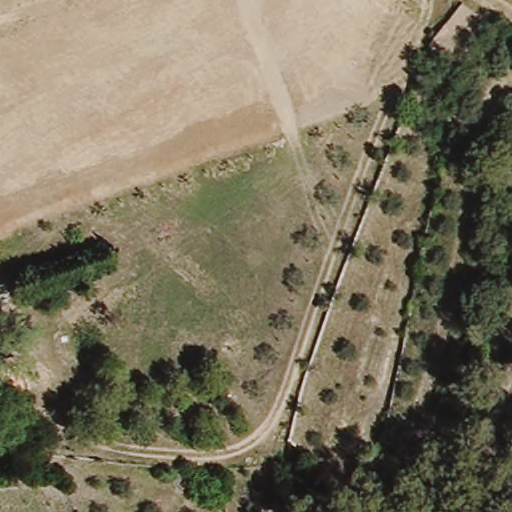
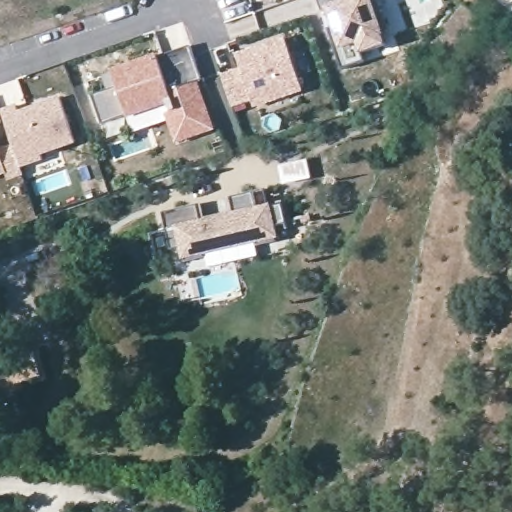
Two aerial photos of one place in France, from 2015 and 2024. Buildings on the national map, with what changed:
new [(382,32),(386,45),(363,53),(366,61),(343,70),(334,45),(341,43),(330,9),(323,11),(318,0),(379,0),(389,30),(382,32)]
unchanged [(491,20),(457,62),(430,41),(454,12),(463,0),(491,20)]
new [(242,71),(238,58),(286,42),(303,90),(254,106),(252,99),(233,106),(223,77),(242,71)]
new [(118,87),(113,73),(191,46),(203,80),(197,83),(213,128),(178,140),(170,116),(173,116),(171,111),(176,109),(173,101),(103,125),(93,96),(118,87)]
new [(1,109),(16,103),(19,110),(61,96),(77,144),(42,156),(44,160),(23,169),(14,143),(1,109)]
new [(25,176),(9,181),(6,175),(0,177),(0,148),(14,143),(25,176)]
new [(211,216),(243,209),(239,191),(262,186),(274,183),(278,201),(291,198),(296,217),(283,220),(286,235),(266,240),(265,235),(213,247),(215,251),(195,256),(191,241),(180,244),(171,207),(207,199),(211,216)]
unchanged [(24,390),(1,396),(0,396),(0,364),(17,360),(24,390)]

